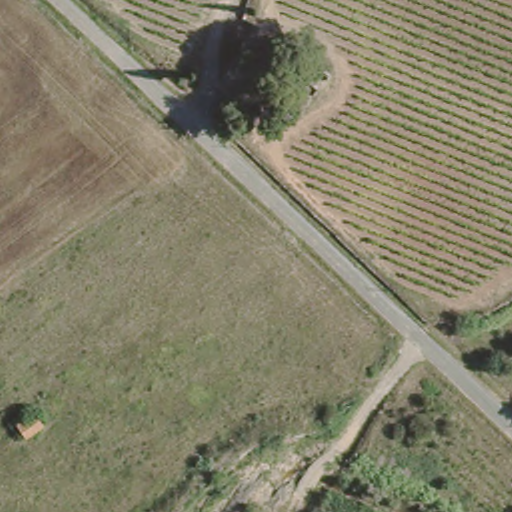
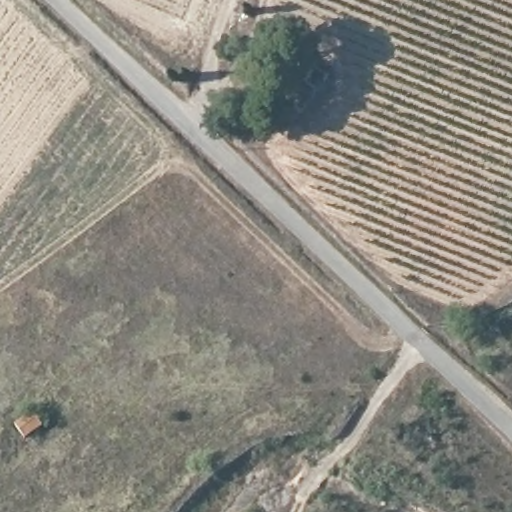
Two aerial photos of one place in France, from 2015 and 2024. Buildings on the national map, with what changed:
unchanged [(271,53),(286,58),(281,73),(266,67),(271,53)]
unchanged [(24,439),(8,422),(30,405),(48,427),(24,439)]

